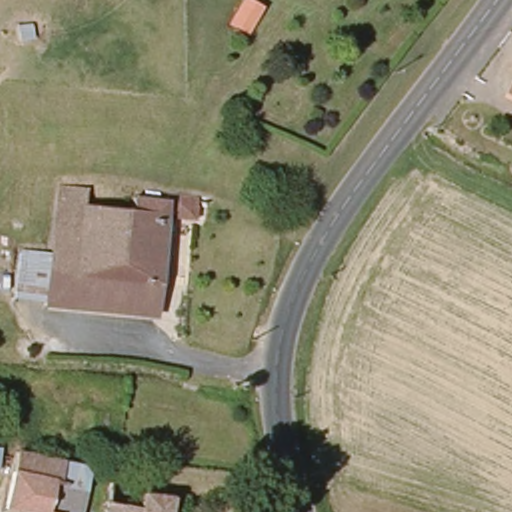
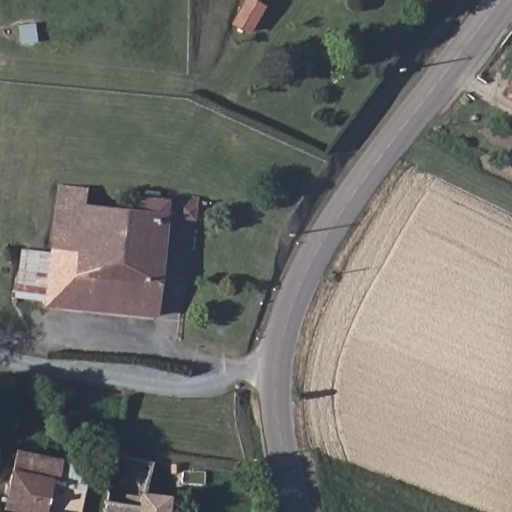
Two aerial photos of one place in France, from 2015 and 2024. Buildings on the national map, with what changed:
unchanged [(247,30),(232,21),(244,0),(251,0),(261,6),(247,30)]
unchanged [(26,257),(55,260),(63,195),(83,197),(82,214),(134,221),(136,202),(171,207),(157,322),(51,309),(51,291),(24,288),(26,257)]
unchanged [(193,196),(191,222),(175,220),(177,196),(193,196)]
unchanged [(0,448),(2,448),(0,459),(0,448)]
unchanged [(172,512),(109,512),(116,460),(153,466),(151,482),(170,485),(168,502),(173,503),(172,512)]
unchanged [(10,510),(20,461),(49,467),(75,472),(70,496),(88,499),(85,512),(20,512),(10,510)]

